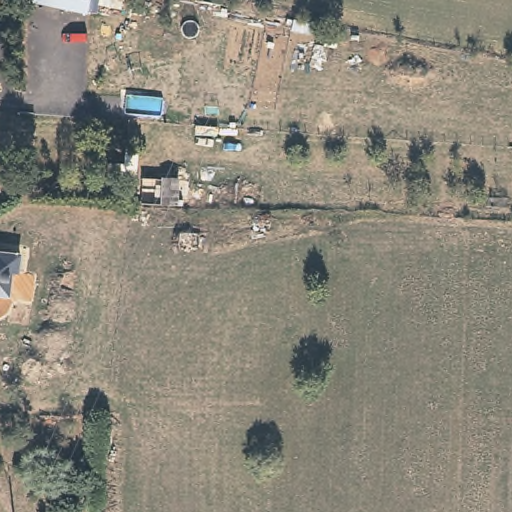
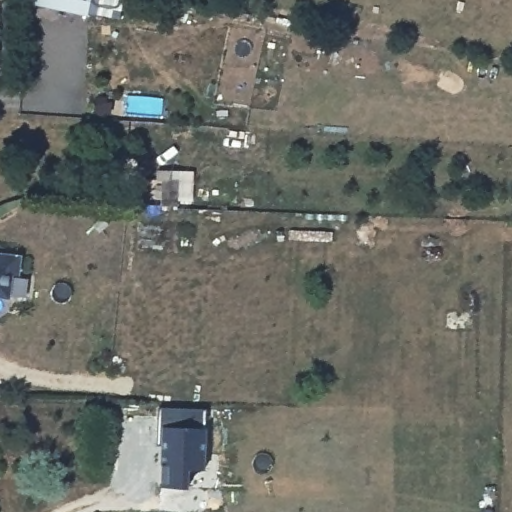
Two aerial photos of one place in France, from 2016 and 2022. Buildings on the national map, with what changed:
unchanged [(88,18),(30,6),(31,0),(91,0),(88,18)]
unchanged [(13,272),(11,297),(0,297),(0,252),(22,255),(20,273),(13,272)]
new [(161,463),(164,443),(159,443),(160,409),(207,410),(206,427),(208,429),(206,469),(190,468),(190,486),(161,486),(161,463)]

